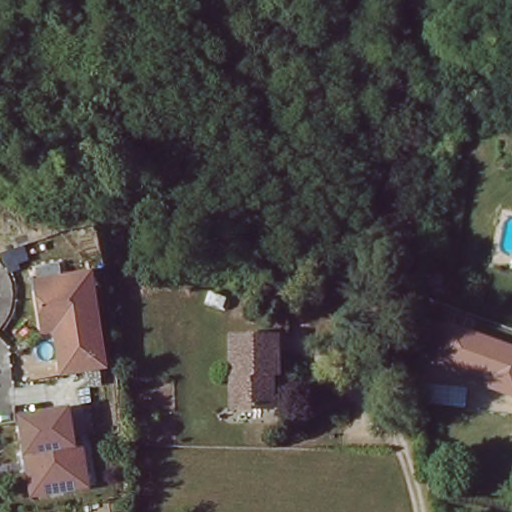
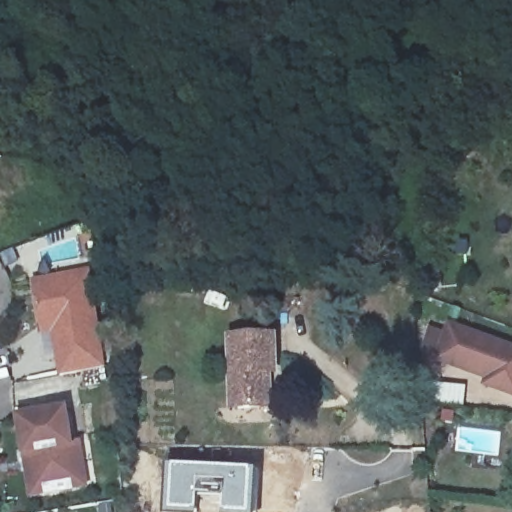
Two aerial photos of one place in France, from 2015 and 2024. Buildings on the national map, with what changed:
unchanged [(98,277),(113,373),(67,378),(62,334),(43,336),(40,281),(98,277)]
unchanged [(444,333),(448,322),(512,345),(512,397),(482,387),(484,379),(435,362),(436,355),(420,350),(427,327),(444,333)]
unchanged [(275,376),(268,376),(269,410),(233,411),(230,342),(274,340),(275,376)]
unchanged [(88,490),(80,491),(33,497),(30,472),(28,456),(22,420),(70,413),(75,448),(82,447),(88,490)]
new [(257,470),(255,512),(223,512),(224,500),(200,497),(199,512),(167,512),(170,464),(257,470)]

